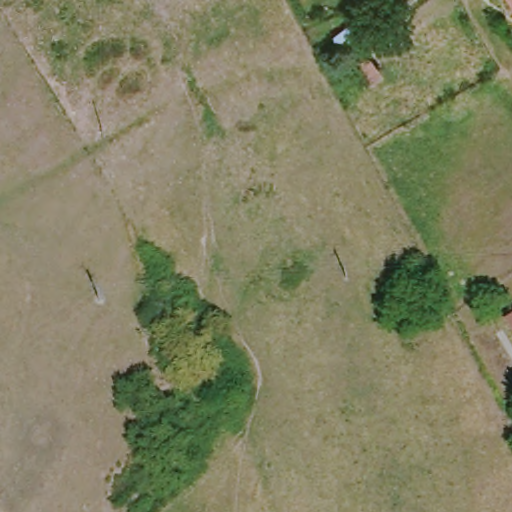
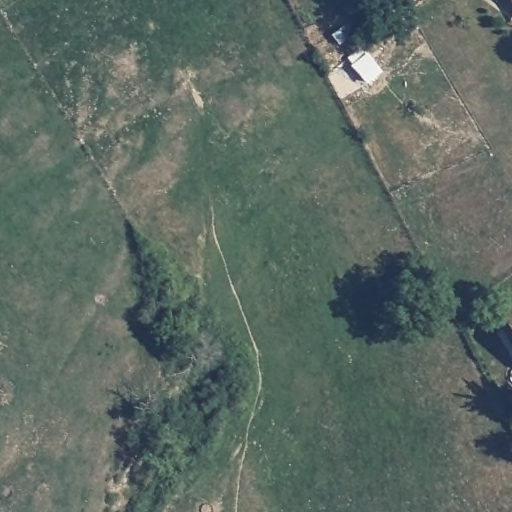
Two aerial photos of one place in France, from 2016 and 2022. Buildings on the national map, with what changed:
unchanged [(511,0),(512,0),(512,2),(511,0)]
unchanged [(507,323),(512,320),(512,330),(507,323)]

